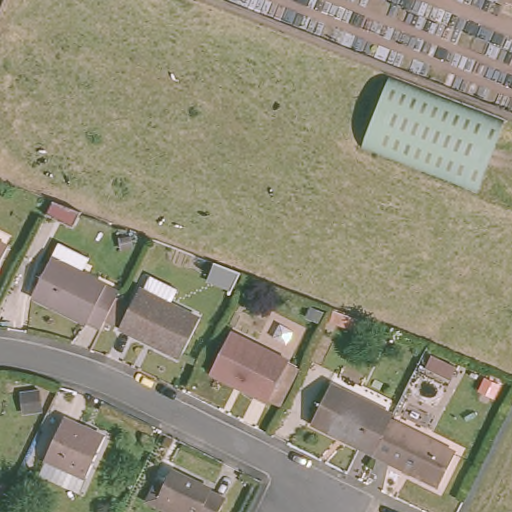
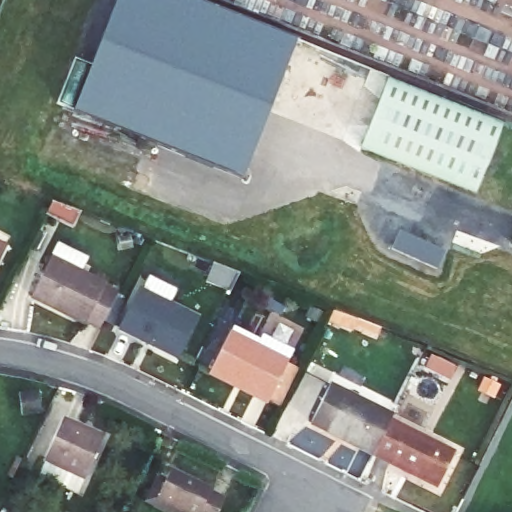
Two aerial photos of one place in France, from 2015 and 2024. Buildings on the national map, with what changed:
new [(73,111),(117,0),(196,0),(297,40),(243,180),(73,111)]
unchanged [(475,190),(362,147),(388,75),(505,119),(475,190)]
unchanged [(10,244),(0,265),(0,239),(10,244)]
unchanged [(36,297),(53,260),(62,243),(92,258),(85,275),(106,284),(120,290),(104,330),(92,325),(36,297)]
unchanged [(125,329),(142,291),(200,316),(184,356),(125,329)]
unchanged [(364,336),(326,322),(331,306),(368,321),(364,336)]
unchanged [(280,400),(268,396),(215,369),(231,333),(288,358),(298,363),(280,400)]
unchanged [(310,420),(326,386),(391,417),(375,451),(310,420)]
unchanged [(42,472),(51,453),(70,413),(110,433),(90,471),(82,490),(42,472)]
unchanged [(391,417),(455,447),(439,482),(375,451),(391,417)]
unchanged [(155,503),(173,467),(216,488),(213,495),(223,501),(219,512),(171,512),(155,503)]

